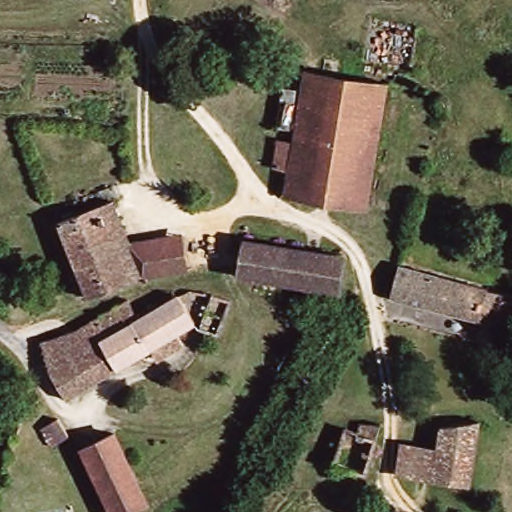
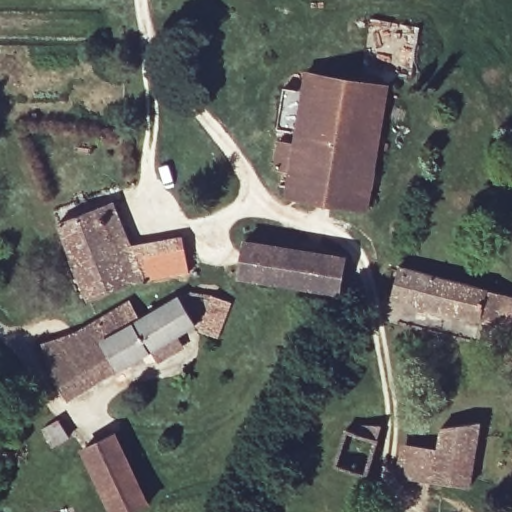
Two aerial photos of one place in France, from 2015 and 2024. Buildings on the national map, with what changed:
unchanged [(309,75),(388,87),(366,212),(288,196),(291,170),(278,169),(282,142),(297,145),(309,75)]
unchanged [(126,276),(95,204),(110,197),(128,241),(178,235),(185,270),(126,276)]
unchanged [(56,221),(95,204),(126,276),(127,283),(88,298),(56,221)]
unchanged [(338,291),(241,275),(247,242),(343,262),(338,291)]
unchanged [(398,268),(491,290),(512,294),(512,317),(510,328),(426,309),(391,301),(398,268)]
unchanged [(75,334),(127,301),(136,322),(178,296),(196,326),(176,338),(182,348),(158,364),(150,354),(66,401),(42,344),(75,334)]
unchanged [(47,428),(63,419),(72,435),(56,443),(47,428)]
unchanged [(361,422),(383,425),(365,476),(331,464),(344,428),(359,431),(361,422)]
unchanged [(442,422),(477,423),(470,487),(435,483),(439,448),(442,422)]
unchanged [(113,438),(144,506),(129,512),(109,512),(96,485),(81,455),(113,438)]
unchanged [(439,448),(435,483),(400,479),(405,444),(439,448)]

